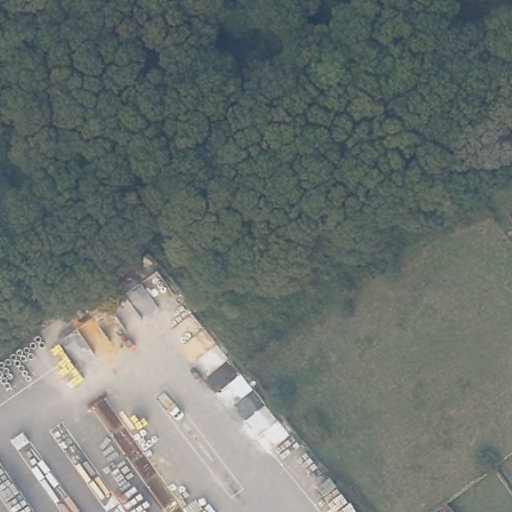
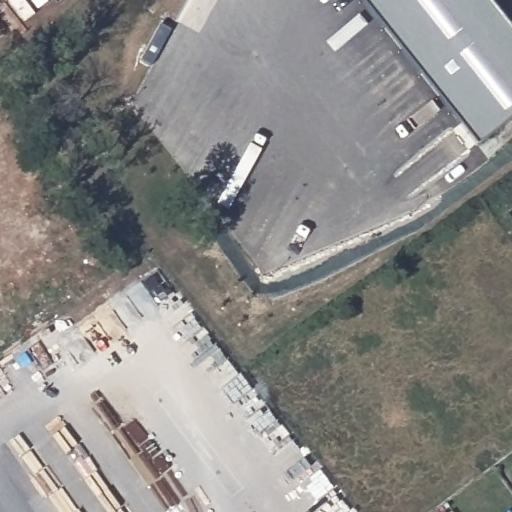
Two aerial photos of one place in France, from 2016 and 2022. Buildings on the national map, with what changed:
new [(364,0),(492,0),(512,25),(512,117),(478,144),(364,0)]

